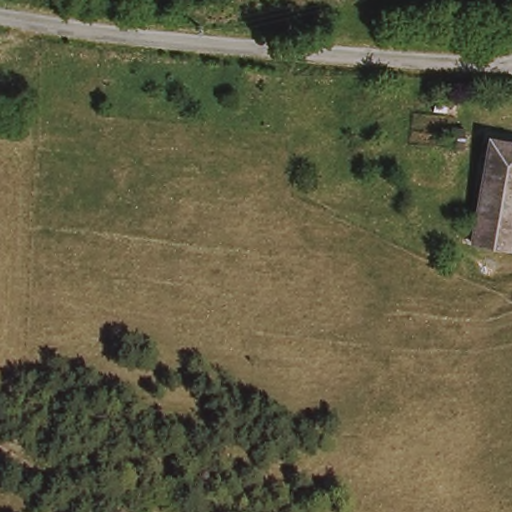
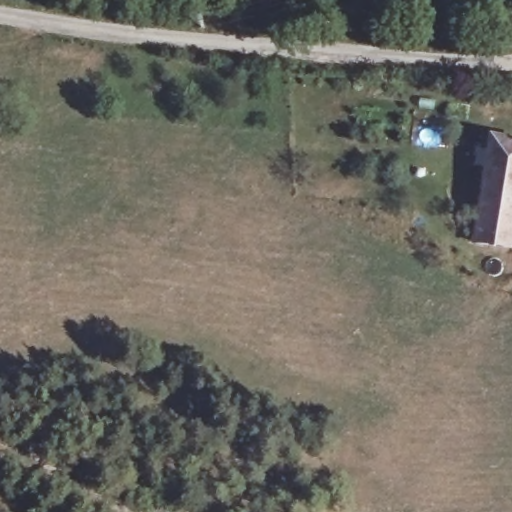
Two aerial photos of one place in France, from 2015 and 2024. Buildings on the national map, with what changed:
unchanged [(468,233),(486,130),(512,134),(512,240),(468,233)]

